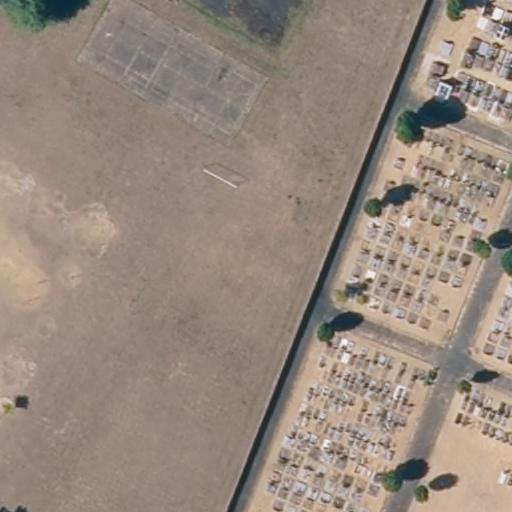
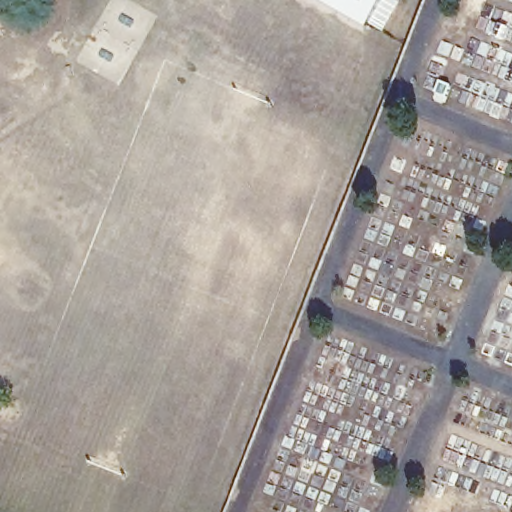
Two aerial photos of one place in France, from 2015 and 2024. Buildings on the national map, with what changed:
new [(383,0),(368,26),(321,0),(383,0)]

